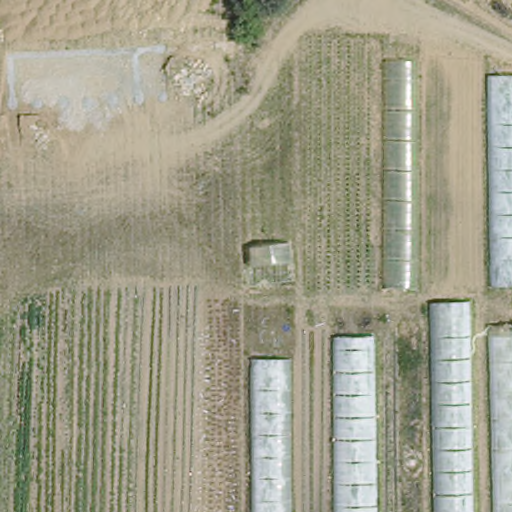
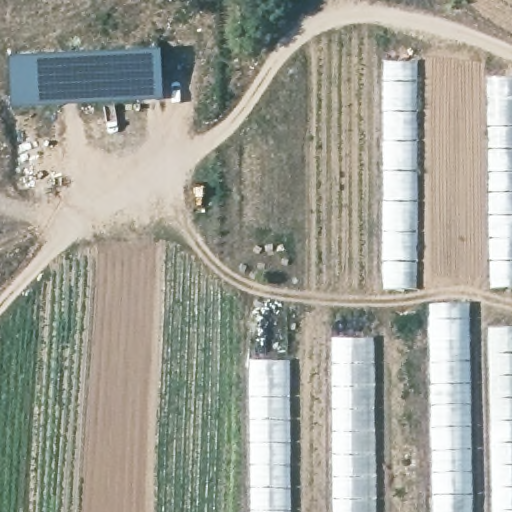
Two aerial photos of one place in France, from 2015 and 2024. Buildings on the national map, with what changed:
new [(163,45),(166,95),(136,96),(133,46),(163,45)]
new [(133,46),(136,96),(16,101),(13,51),(133,46)]
unchanged [(388,61),(417,61),(416,288),(389,288),(388,61)]
unchanged [(491,78),(512,77),(512,286),(495,286),(491,78)]
unchanged [(436,304),(465,304),(468,512),(439,512),(436,304)]
unchanged [(494,327),(512,326),(512,512),(499,512),(494,327)]
unchanged [(339,338),(370,338),(372,512),(339,512),(339,338)]
unchanged [(255,360),(286,361),(285,512),(255,512),(255,360)]
unchanged [(418,467),(419,482),(404,483),(403,468),(418,467)]

